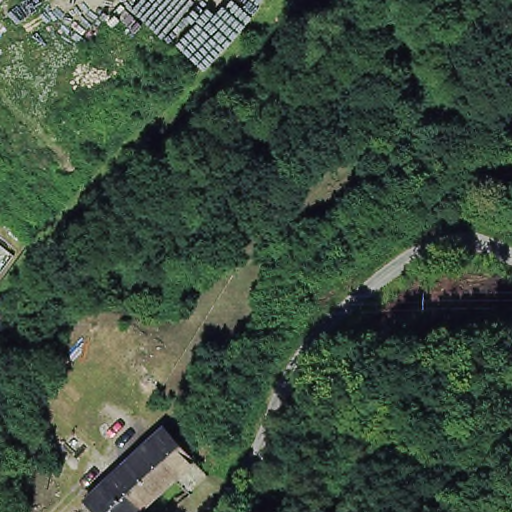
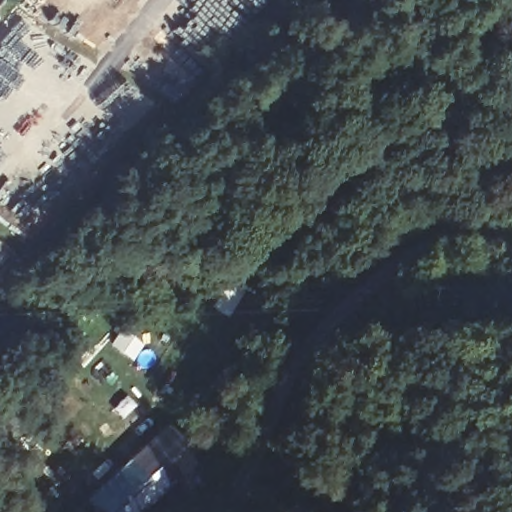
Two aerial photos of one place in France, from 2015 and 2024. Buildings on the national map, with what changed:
unchanged [(192,457),(157,488),(126,456),(162,422),(192,457)]
unchanged [(94,512),(80,498),(126,456),(157,488),(130,512),(94,512)]

